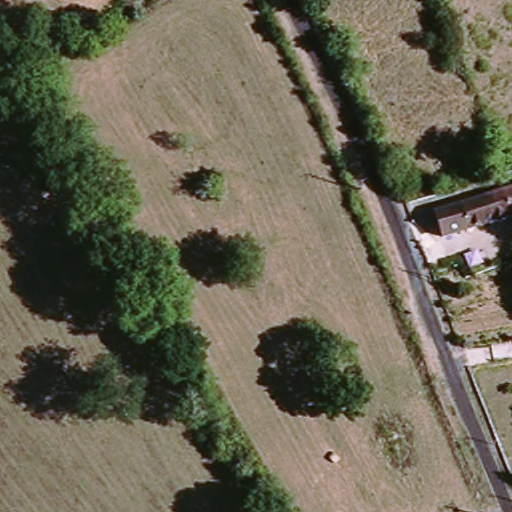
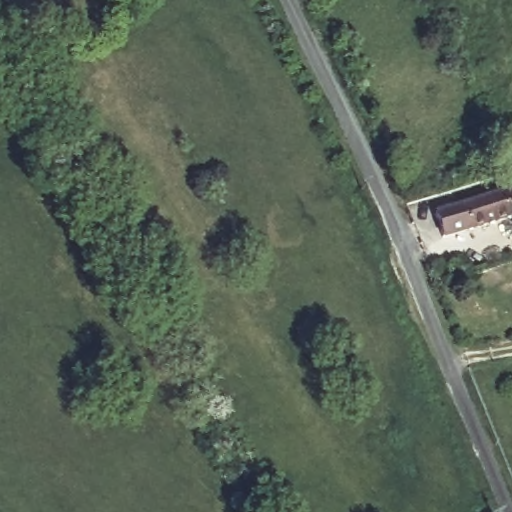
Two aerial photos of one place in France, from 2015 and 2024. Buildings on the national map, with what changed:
unchanged [(426,228),(422,214),(512,184),(512,215),(430,242),(426,228)]

